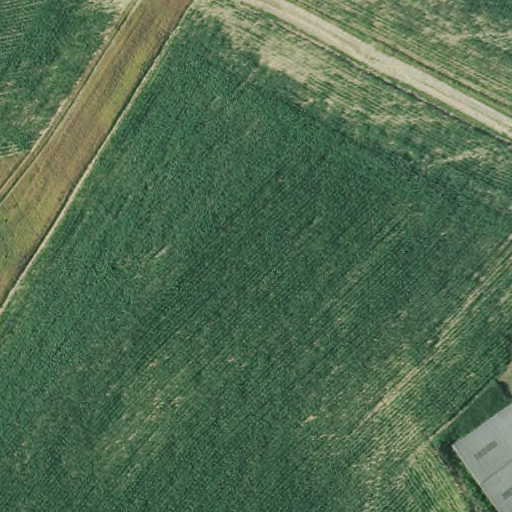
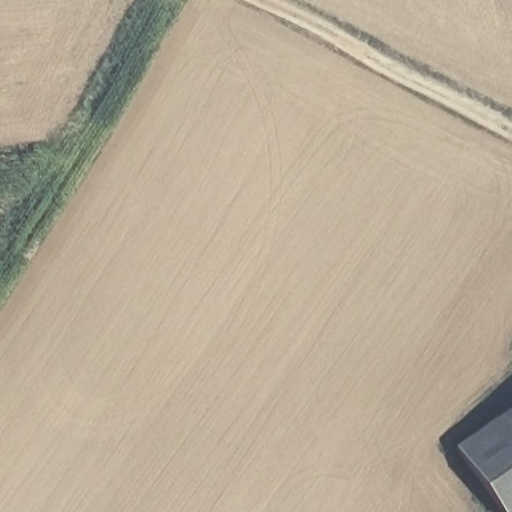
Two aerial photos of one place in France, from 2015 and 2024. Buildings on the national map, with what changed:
unchanged [(512,405),(512,450),(492,419),(512,405)]
unchanged [(450,448),(492,419),(512,450),(512,512),(493,512),(450,448)]

